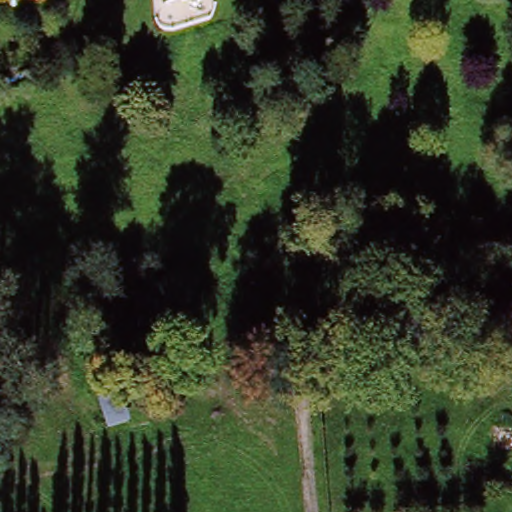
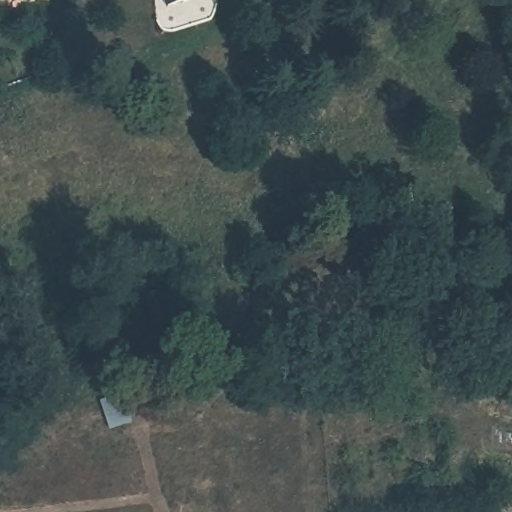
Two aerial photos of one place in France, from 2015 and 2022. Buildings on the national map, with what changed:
unchanged [(26,0),(51,0),(51,2),(26,0)]
unchanged [(214,3),(170,18),(165,0),(213,0),(214,3)]

